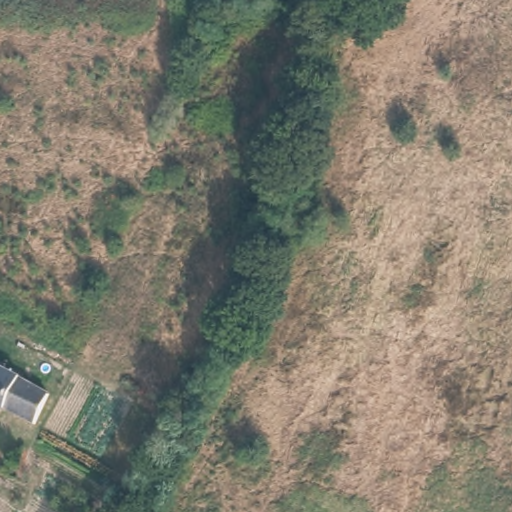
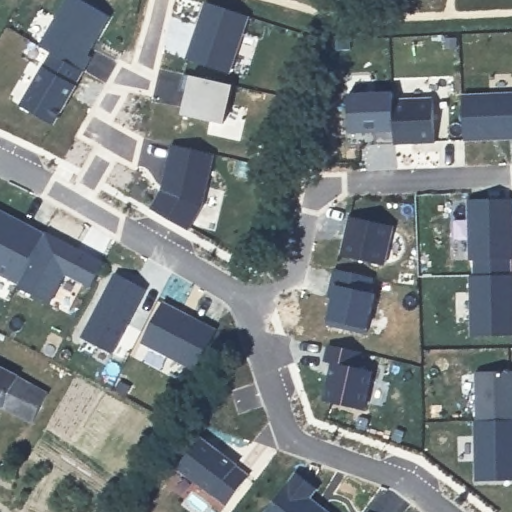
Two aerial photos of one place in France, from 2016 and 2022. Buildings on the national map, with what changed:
new [(66,0),(77,0),(109,19),(87,56),(91,59),(83,72),(39,47),(66,0)]
new [(206,4),(248,17),(229,75),(187,60),(206,4)]
new [(42,66),(49,53),(83,72),(75,86),(55,125),(19,104),(42,66)]
new [(185,75),(233,85),(224,124),(184,115),(189,92),(181,90),(185,75)]
new [(393,94),(394,101),(395,145),(376,146),(376,133),(350,134),(348,96),(393,94)]
new [(512,96),(512,140),(465,141),(463,98),(512,96)]
new [(434,100),(435,144),(395,145),(394,101),(434,100)]
new [(162,190),(171,146),(214,156),(202,209),(188,232),(150,211),(162,190)]
new [(512,201),(512,261),(510,261),(511,277),(475,278),(475,262),(471,262),(469,202),(512,201)]
new [(0,210),(44,235),(19,285),(0,274),(0,210)]
new [(350,219),(393,229),(384,267),(342,257),(350,219)]
new [(44,235),(103,265),(90,290),(65,276),(49,306),(16,289),(44,235)]
new [(111,271),(142,287),(109,351),(78,335),(111,271)]
new [(475,278),(511,277),(512,277),(512,337),(473,338),(471,278),(475,278)]
new [(163,305),(215,333),(195,371),(143,344),(163,305)]
new [(333,366),(325,364),(329,347),(361,354),(357,370),(373,373),(364,412),(325,403),(333,366)]
unchanged [(0,406),(0,369),(49,395),(34,423),(0,406)]
new [(512,374),(512,423),(477,423),(476,375),(512,374)]
new [(512,423),(512,480),(477,481),(474,424),(477,423),(512,423)]
new [(200,441),(236,468),(235,470),(248,479),(227,507),(178,470),(200,441)]
new [(317,492),(310,501),(318,507),(314,511),(316,512),(269,512),(297,477),(317,492)]
new [(324,512),(323,512),(324,511),(324,512)]

